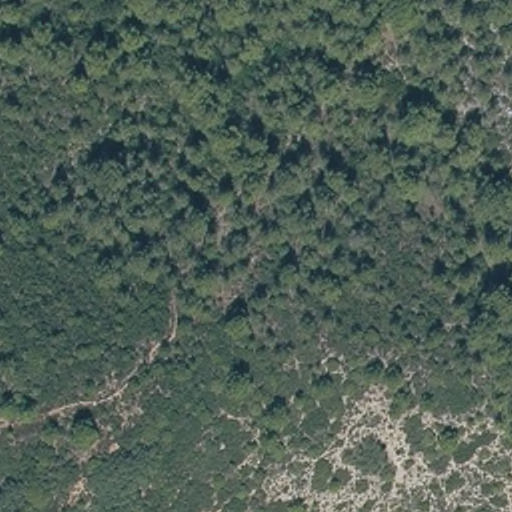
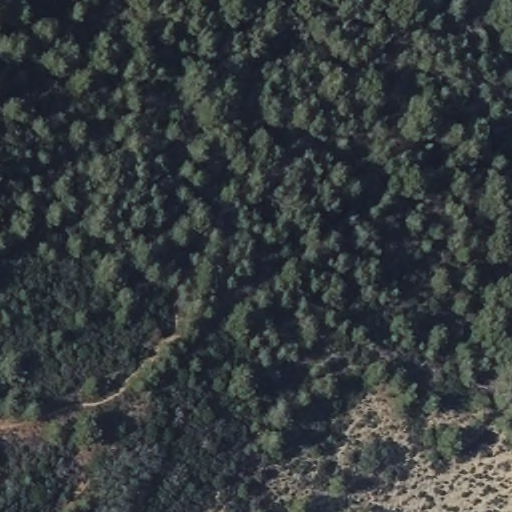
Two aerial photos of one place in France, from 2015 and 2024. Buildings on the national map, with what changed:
[]

